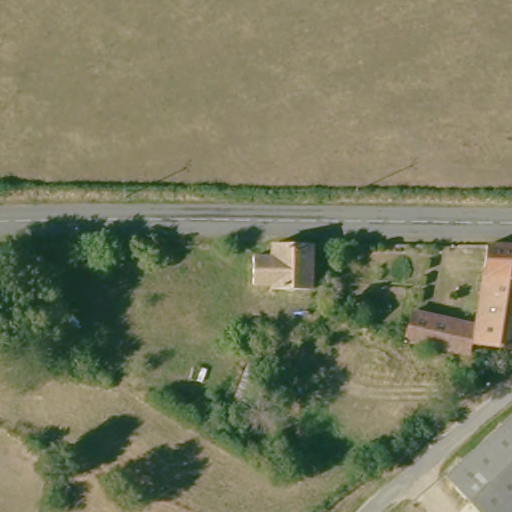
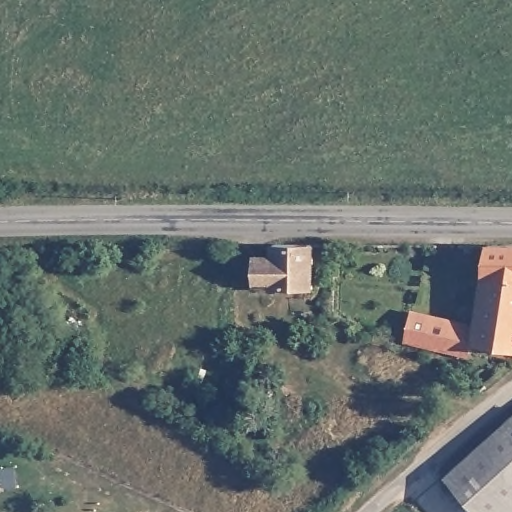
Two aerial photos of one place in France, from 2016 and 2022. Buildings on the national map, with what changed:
unchanged [(315,289),(270,289),(270,284),(252,283),(252,254),(270,255),(270,243),(314,243),(315,289)]
unchanged [(490,249),(512,249),(512,354),(479,351),(490,249)]
unchanged [(415,314),(479,326),(473,361),(410,347),(415,314)]
unchanged [(257,414),(232,405),(246,368),(270,377),(257,414)]
unchanged [(512,425),(512,512),(475,512),(449,480),(512,425)]

